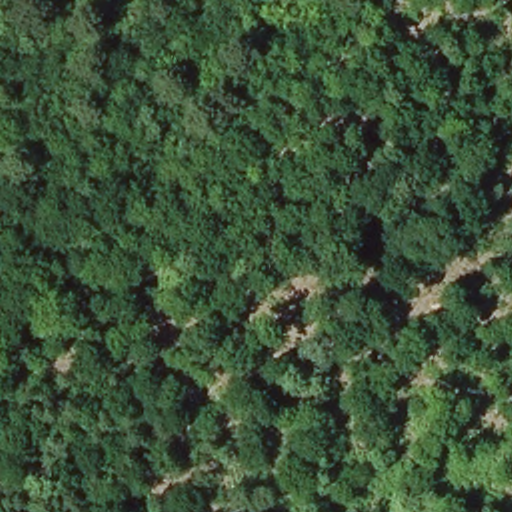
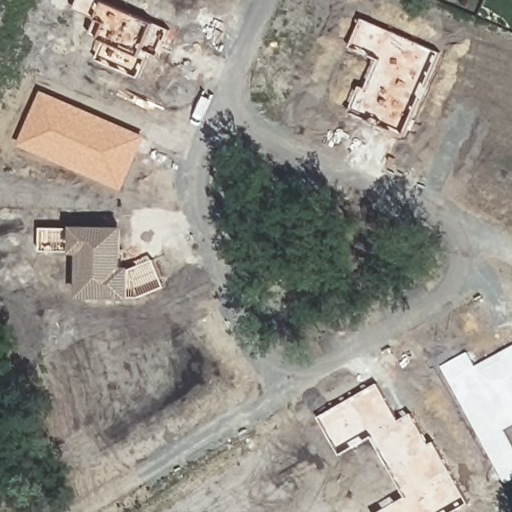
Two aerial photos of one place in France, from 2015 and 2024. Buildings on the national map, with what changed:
new [(156,23),(171,29),(159,56),(149,52),(138,78),(97,60),(107,42),(100,37),(91,33),(96,19),(97,16),(75,8),(78,0),(102,0),(104,1),(156,23)]
new [(441,53),(405,135),(349,113),(360,86),(366,89),(378,60),(349,47),(363,19),(441,53)]
new [(123,190),(18,145),(42,91),(146,135),(123,190)]
new [(167,287),(141,298),(132,298),(132,299),(80,296),(79,254),(72,254),(41,252),(41,228),(72,229),(72,226),(125,229),(122,267),(131,268),(154,258),(167,287)]
new [(512,346),(512,426),(503,430),(512,446),(512,481),(504,484),(441,367),(467,353),(475,366),(512,346)]
new [(378,383),(399,420),(412,413),(429,444),(434,441),(469,503),(454,512),(381,512),(404,497),(372,436),(339,455),(318,417),(378,383)]

